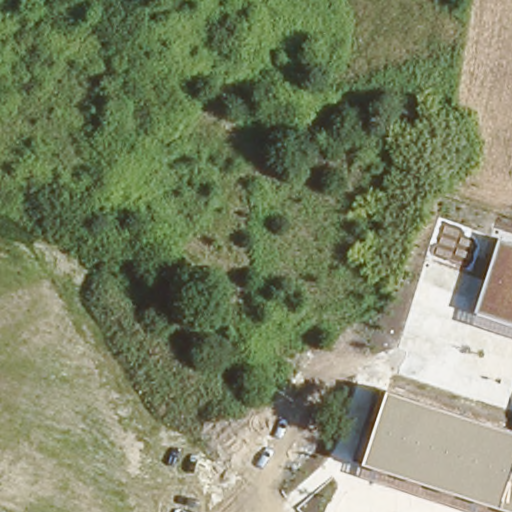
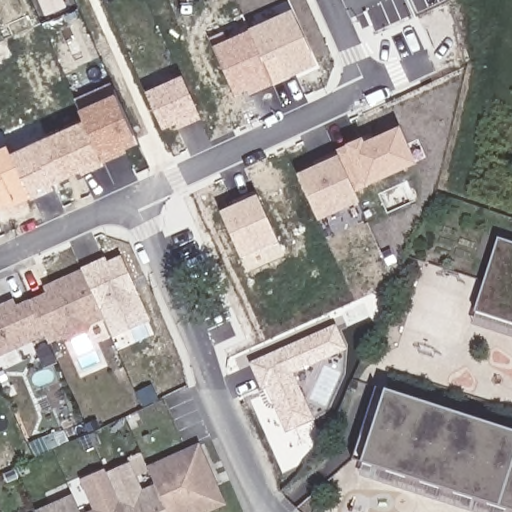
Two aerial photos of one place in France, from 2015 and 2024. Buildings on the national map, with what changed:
new [(224,33),(228,41),(293,12),(318,67),(249,99),(246,93),(235,98),(209,40),(224,33)]
new [(161,129),(146,95),(183,78),(198,112),(161,129)]
new [(126,147),(128,151),(104,161),(100,152),(80,106),(75,96),(110,79),(116,91),(138,142),(126,147)]
new [(100,152),(104,161),(105,163),(80,174),(79,169),(54,180),(56,185),(30,197),(8,206),(6,203),(0,206),(0,145),(9,141),(12,150),(85,117),(100,152)]
new [(353,189),(338,153),(361,142),(364,146),(399,130),(413,163),(353,189)]
new [(353,189),(360,203),(319,221),(297,175),(339,156),(353,189)]
new [(241,260),(219,212),(257,195),(279,243),(241,260)]
unchanged [(476,311),(499,239),(512,243),(512,336),(472,323),(476,311)]
new [(85,267),(105,257),(108,262),(121,256),(150,322),(113,337),(105,316),(85,267)]
new [(49,292),(45,285),(85,267),(106,315),(92,322),(88,331),(74,337),(64,334),(51,341),(32,300),(49,292)]
new [(34,306),(48,336),(0,356),(0,305),(15,299),(19,305),(32,300),(34,306)]
new [(294,373),(315,419),(286,432),(266,389),(261,390),(250,363),(336,323),(347,349),(294,373)]
unchanged [(512,431),(512,512),(475,512),(360,475),(362,462),(386,389),(512,431)]
new [(104,441),(99,444),(94,432),(99,430),(104,441)]
new [(138,473),(153,466),(202,443),(229,499),(202,512),(129,512),(111,472),(133,462),(138,473)]
new [(32,469),(24,472),(21,466),(29,462),(32,469)]
new [(100,509),(87,478),(109,468),(111,472),(129,512),(93,512),(100,509)]
new [(41,511),(77,494),(85,512),(41,512),(41,511)]

